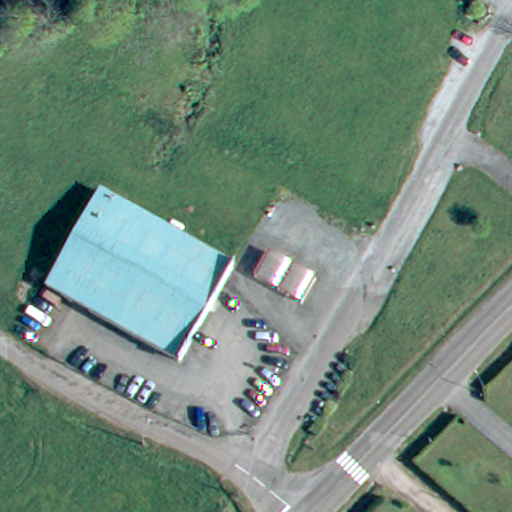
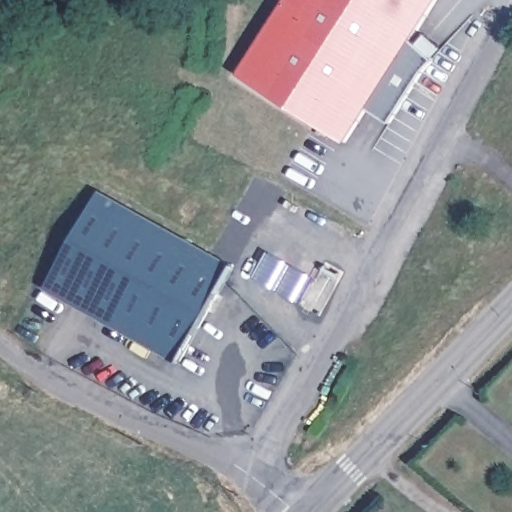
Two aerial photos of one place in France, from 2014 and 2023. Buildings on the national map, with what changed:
new [(424,70),(391,123),(367,109),(345,144),(240,74),(286,0),(437,0),(412,40),(434,60),(424,70)]
unchanged [(112,196),(243,271),(187,364),(60,289),(112,196)]
unchanged [(314,280),(299,304),(252,275),(265,252),(314,280)]

